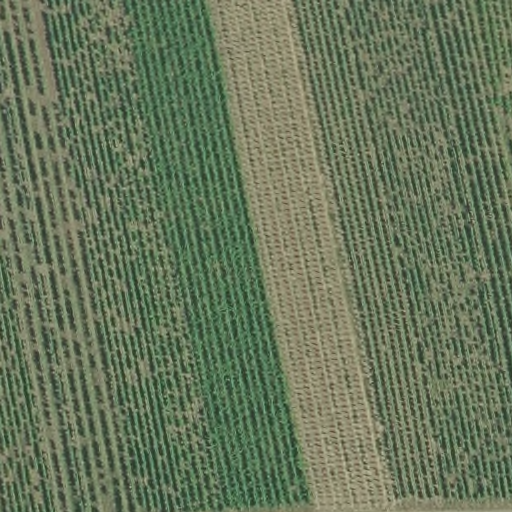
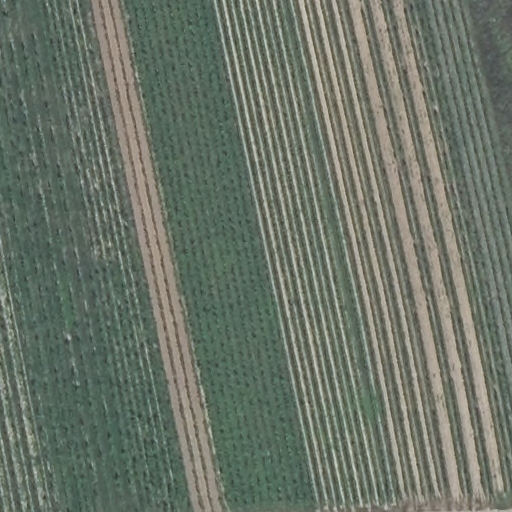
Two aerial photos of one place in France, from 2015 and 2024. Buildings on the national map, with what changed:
[]

